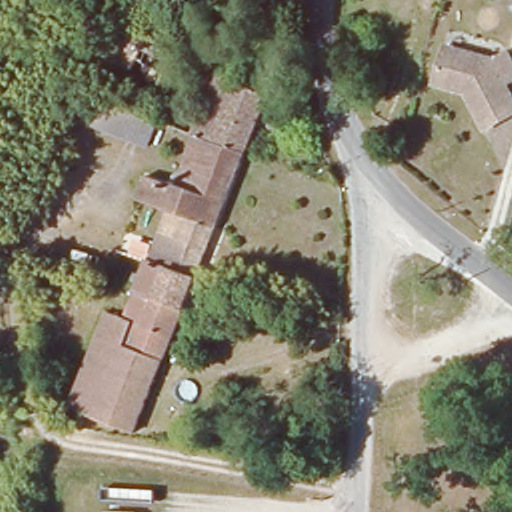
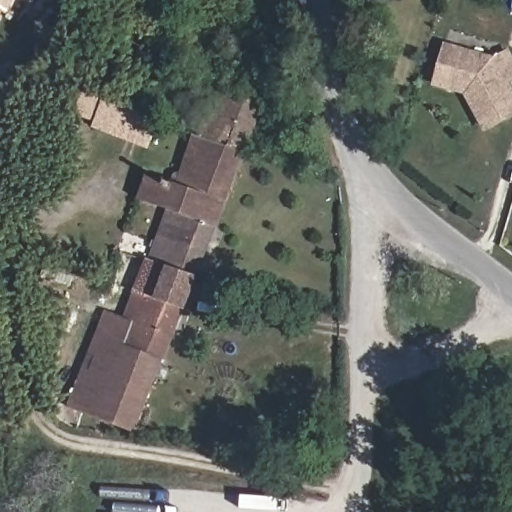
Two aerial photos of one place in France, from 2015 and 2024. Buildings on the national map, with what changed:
new [(8,15),(0,9),(0,0),(15,0),(8,15)]
unchanged [(146,41),(152,44),(160,27),(184,36),(162,88),(134,75),(146,41)]
unchanged [(106,63),(119,30),(146,41),(134,75),(106,63)]
unchanged [(512,58),(512,83),(508,85),(512,93),(512,117),(487,131),(467,93),(452,89),(438,84),(451,46),(466,51),(496,61),(510,54),(512,58)]
unchanged [(202,134),(196,131),(201,117),(206,104),(211,94),(215,82),(220,70),(272,90),(247,152),(202,134)]
unchanged [(162,122),(152,149),(100,129),(109,103),(162,122)]
unchanged [(217,225),(173,207),(144,196),(153,172),(183,184),(202,134),(247,152),(217,225)]
unchanged [(211,241),(197,275),(154,257),(173,207),(217,225),(211,241)]
unchanged [(0,238),(0,233),(4,221),(23,228),(17,243),(0,238)]
unchanged [(154,257),(197,275),(177,328),(135,435),(72,408),(109,313),(125,320),(150,257),(154,257)]

